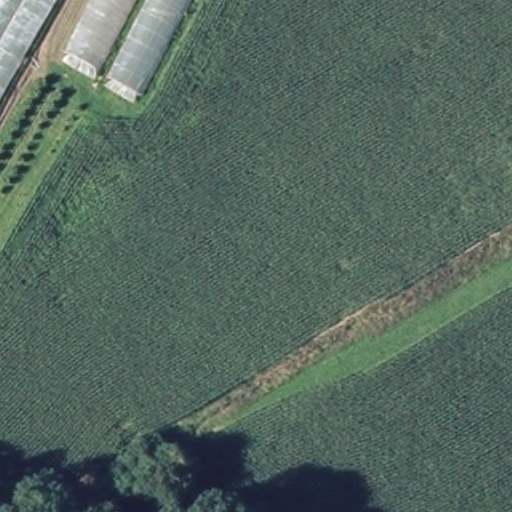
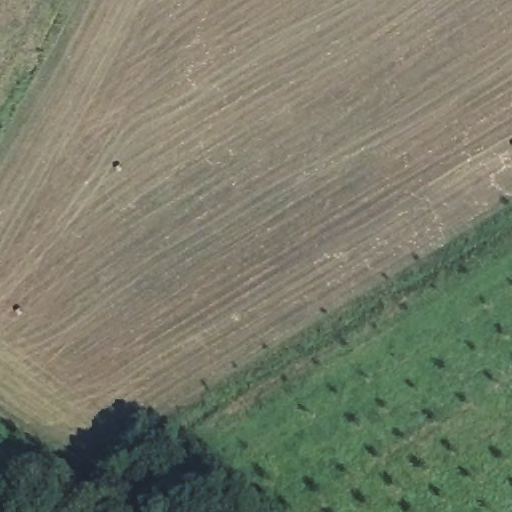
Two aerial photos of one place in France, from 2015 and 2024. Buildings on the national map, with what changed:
unchanged [(0,105),(0,0),(59,0),(0,105)]
demolished [(143,92),(66,52),(92,0),(190,0),(143,92)]

